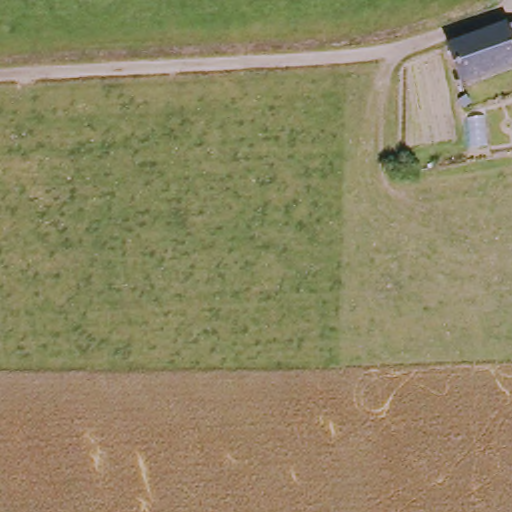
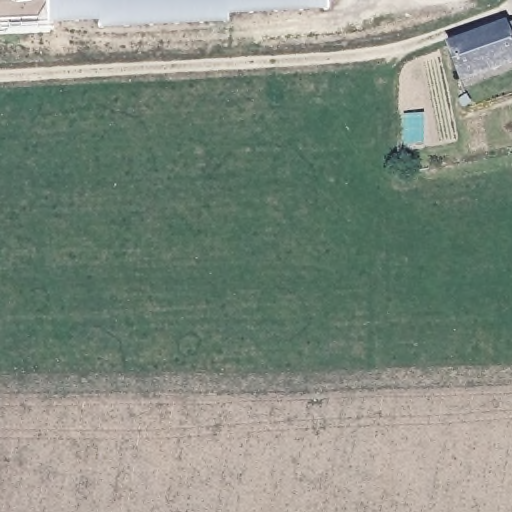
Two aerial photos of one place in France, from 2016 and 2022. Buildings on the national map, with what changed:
new [(331,8),(229,13),(230,21),(102,28),(101,22),(50,23),(49,0),(330,0),(331,8)]
unchanged [(508,17),(512,32),(512,57),(452,79),(439,41),(508,17)]

